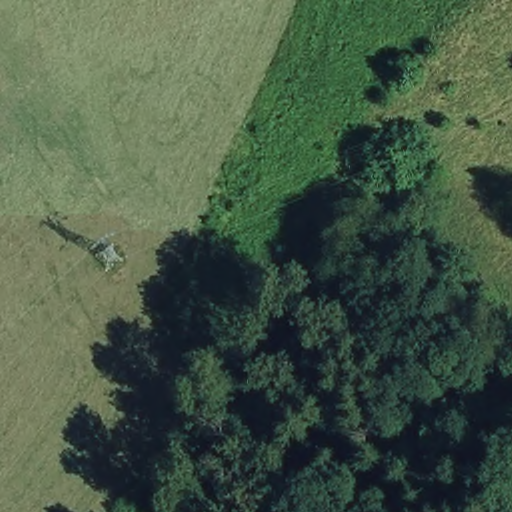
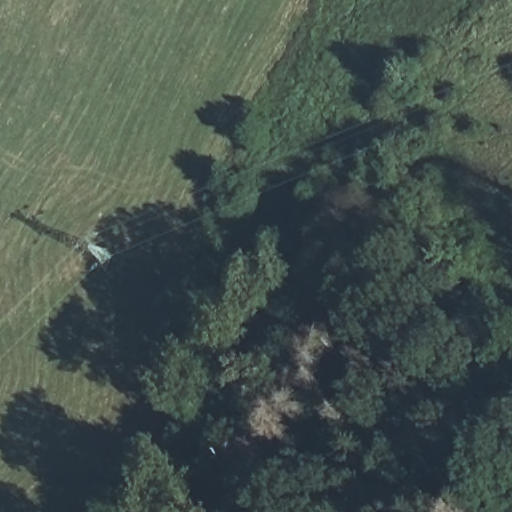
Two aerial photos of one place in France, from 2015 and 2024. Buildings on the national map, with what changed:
[]

